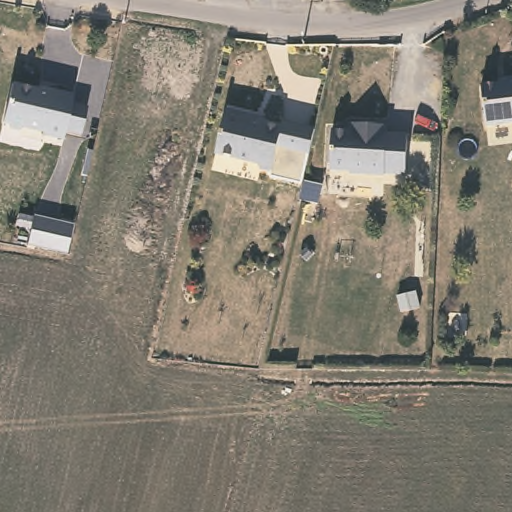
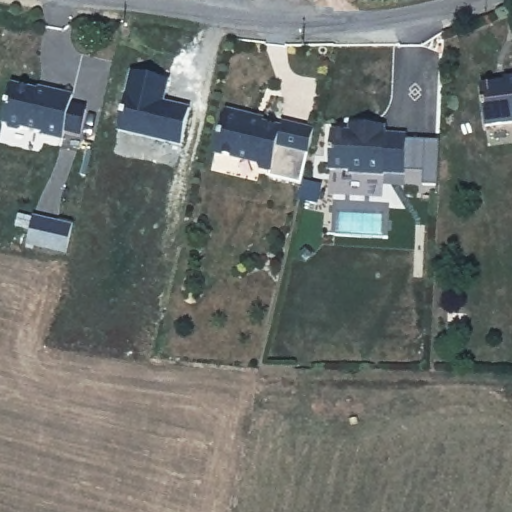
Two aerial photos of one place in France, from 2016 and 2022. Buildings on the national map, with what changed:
new [(167,80),(162,104),(189,109),(181,142),(118,127),(131,71),(167,80)]
unchanged [(481,84),(505,82),(505,77),(512,76),(512,123),(486,126),(481,84)]
unchanged [(79,120),(69,118),(65,133),(43,129),(44,123),(28,120),(20,125),(14,124),(11,118),(4,116),(12,78),(51,88),(53,83),(75,88),(73,96),(84,98),(79,120)]
unchanged [(220,113),(281,122),(273,170),(214,159),(220,113)]
unchanged [(315,130),(307,182),(273,170),(281,122),(315,130)]
unchanged [(380,134),(389,134),(390,137),(407,137),(407,172),(387,171),(386,174),(347,173),(347,169),(329,169),(328,135),(346,135),(346,126),(361,126),(380,126),(380,134)]
unchanged [(441,140),(440,184),(424,184),(425,170),(407,172),(407,140),(441,140)]
unchanged [(69,225),(65,252),(23,242),(27,222),(52,226),(55,221),(69,225)]

